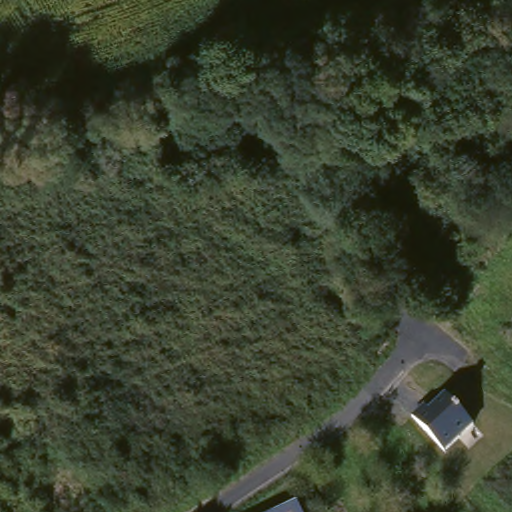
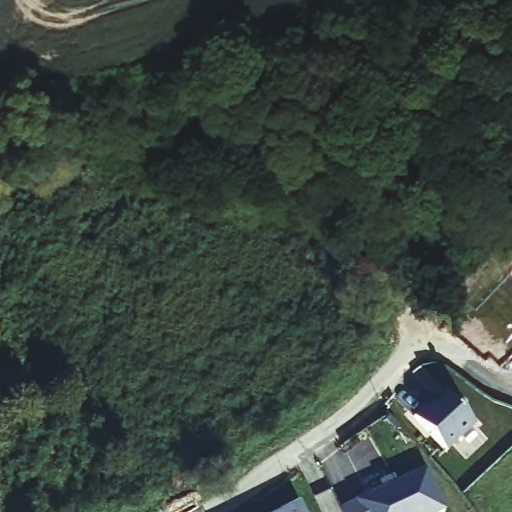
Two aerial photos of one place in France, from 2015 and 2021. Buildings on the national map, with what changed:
unchanged [(430,407),(435,412),(452,397),(478,427),(448,453),(417,418),(430,407)]
new [(393,476),(396,483),(426,469),(445,511),(443,512),(342,512),(340,508),(381,490),(378,483),(393,476)]
unchanged [(297,512),(267,512),(292,501),(297,512)]

